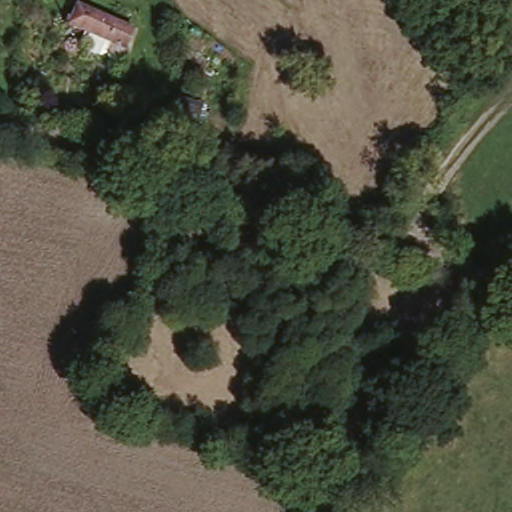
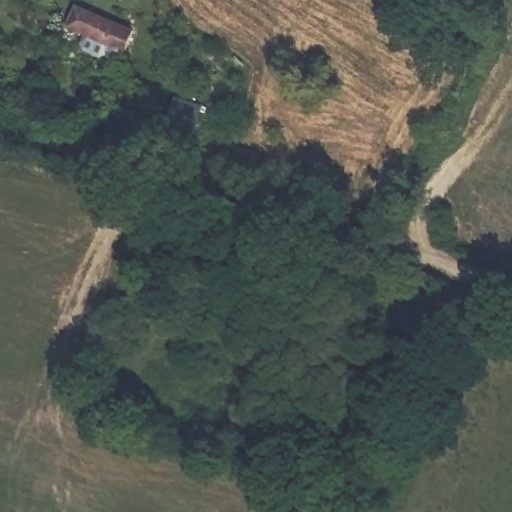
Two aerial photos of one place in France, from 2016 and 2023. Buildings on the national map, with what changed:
unchanged [(123,61),(114,57),(113,52),(117,42),(70,22),(79,2),(141,30),(134,50),(128,60),(123,61)]
unchanged [(155,129),(159,110),(161,105),(188,109),(186,115),(182,133),(155,129)]

